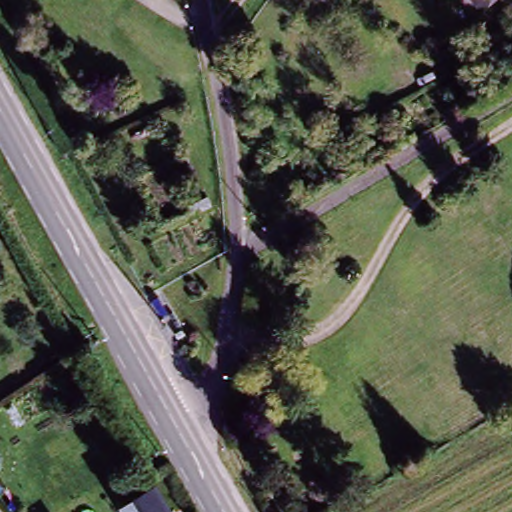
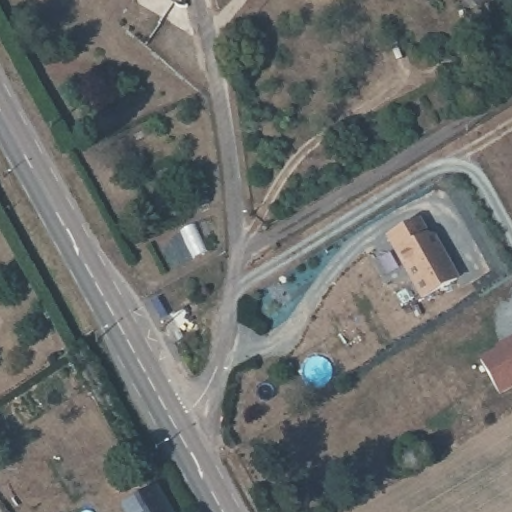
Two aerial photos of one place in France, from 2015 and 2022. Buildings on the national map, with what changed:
unchanged [(474,7),(468,0),(483,0),(474,7)]
new [(428,235),(434,237),(458,278),(423,298),(389,237),(419,219),(428,235)]
new [(481,360),(509,344),(508,341),(512,339),(512,388),(500,394),(481,360)]
unchanged [(153,486),(167,512),(112,512),(110,509),(153,486)]

